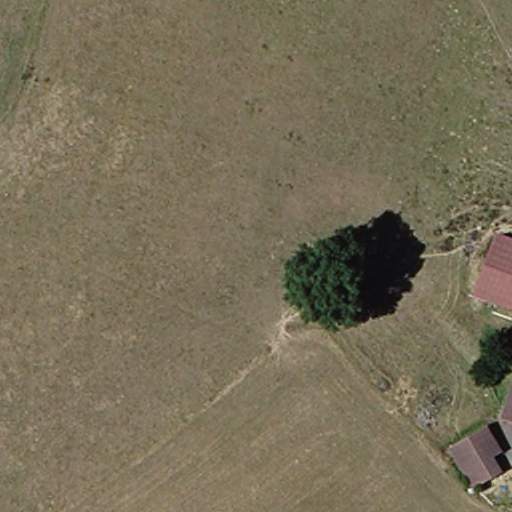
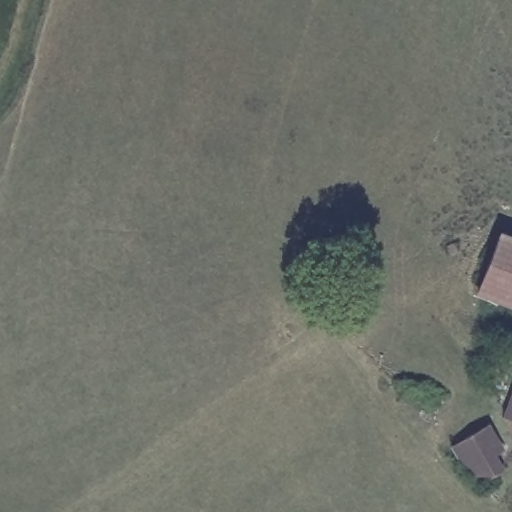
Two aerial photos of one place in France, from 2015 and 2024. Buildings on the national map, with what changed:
unchanged [(480,298),(500,239),(512,243),(512,309),(480,298)]
unchanged [(510,421),(512,412),(512,422),(510,421)]
unchanged [(508,447),(496,456),(505,467),(482,485),(450,448),(493,422),(508,447)]

